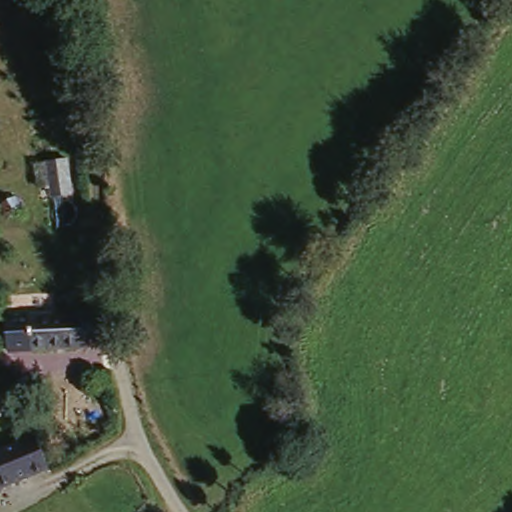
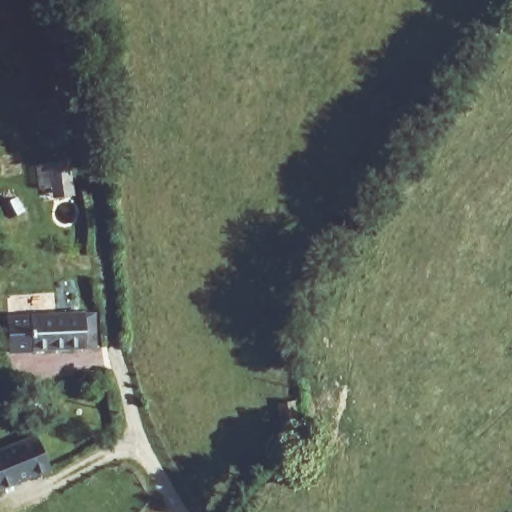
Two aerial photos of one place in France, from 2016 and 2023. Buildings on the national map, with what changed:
unchanged [(12,240),(29,230),(36,245),(20,255),(12,240)]
unchanged [(80,359),(26,358),(5,357),(6,318),(27,318),(92,320),(91,355),(91,359),(80,359)]
unchanged [(0,455),(29,440),(42,464),(0,487),(0,455)]

